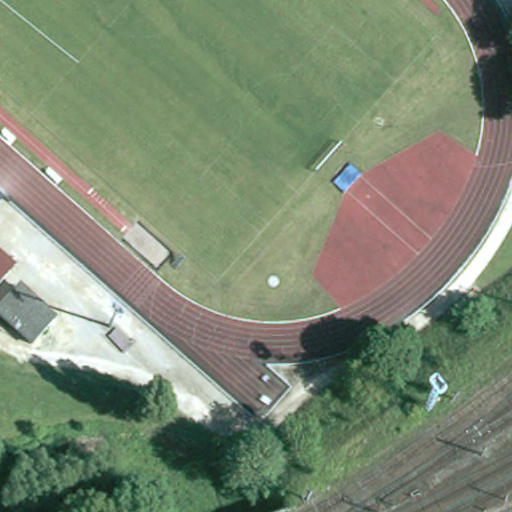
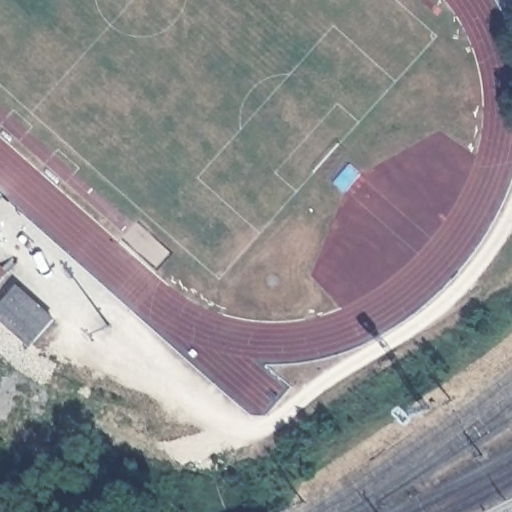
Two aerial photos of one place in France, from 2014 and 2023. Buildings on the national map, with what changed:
unchanged [(0,288),(0,267),(11,277),(0,288)]
unchanged [(52,318),(28,343),(0,317),(0,301),(15,285),(52,318)]

